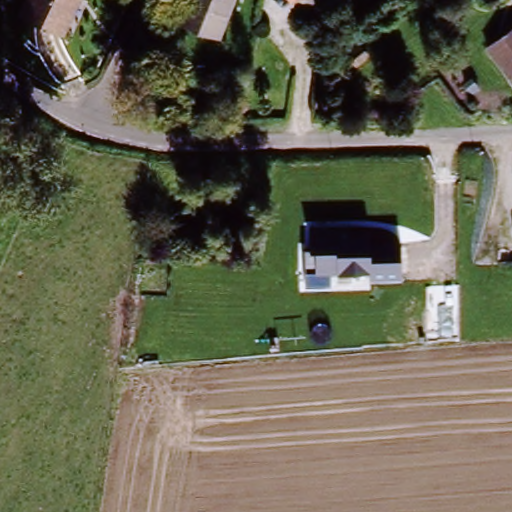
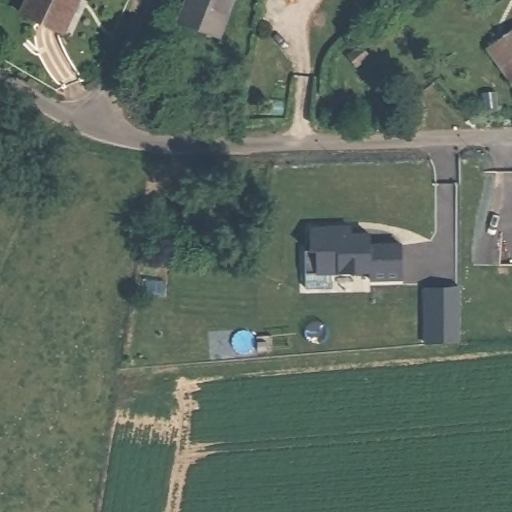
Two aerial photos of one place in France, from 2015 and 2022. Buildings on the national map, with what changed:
unchanged [(24,0),(65,0),(49,30),(17,13),(24,0)]
unchanged [(221,42),(185,29),(195,0),(236,0),(221,42)]
unchanged [(512,39),(512,77),(494,51),(512,39)]
unchanged [(370,282),(340,274),(316,274),(310,226),(351,226),(351,233),(371,233),(371,242),(401,243),(403,283),(370,282)]
new [(425,287),(456,288),(455,343),(423,345),(425,287)]

